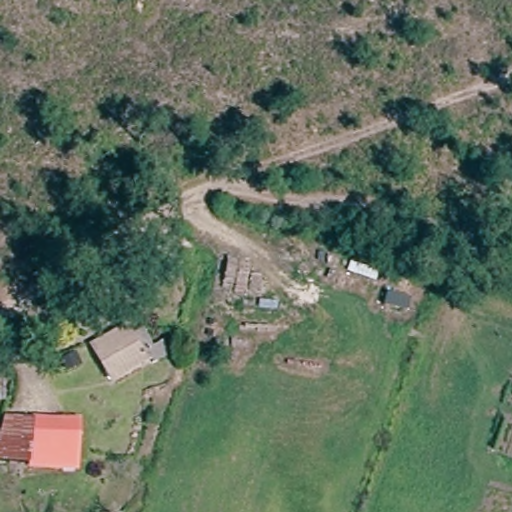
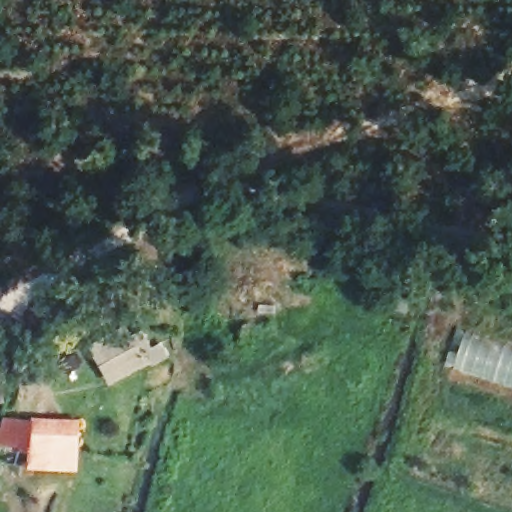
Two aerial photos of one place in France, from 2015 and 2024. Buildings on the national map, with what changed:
unchanged [(126,343),(136,337),(145,360),(154,355),(158,367),(142,375),(140,368),(105,386),(88,352),(107,341),(120,331),(126,343)]
new [(455,365),(466,332),(512,349),(512,385),(455,365)]
unchanged [(0,393),(0,370),(5,392),(0,393)]
unchanged [(73,476),(27,470),(26,475),(0,471),(0,440),(6,423),(80,427),(73,476)]

